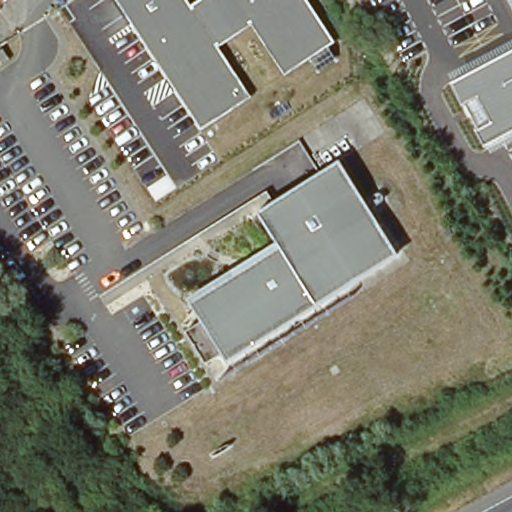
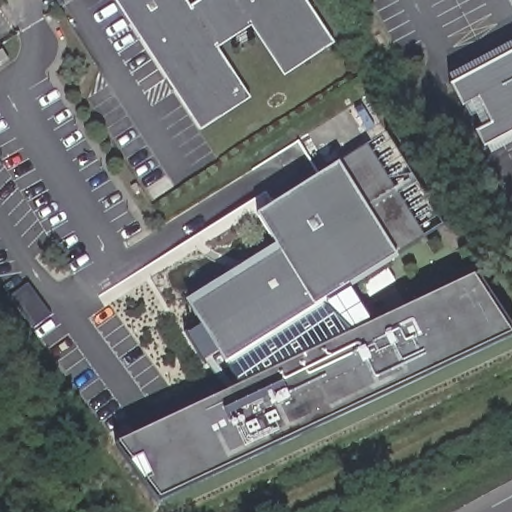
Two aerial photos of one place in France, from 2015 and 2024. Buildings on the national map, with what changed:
unchanged [(215,0),(301,0),(325,36),(291,58),(257,10),(212,39),(245,90),(207,115),(149,27),(141,31),(121,0),(186,0),(194,13),(215,0)]
unchanged [(512,0),(512,11),(507,0),(512,0)]
unchanged [(445,80),(512,42),(512,149),(491,160),(445,80)]
new [(429,237),(401,255),(340,163),(369,145),(429,237)]
unchanged [(197,321),(184,300),(274,242),(257,214),(335,162),(396,255),(350,285),(226,365),(219,355),(205,365),(181,331),(197,321)]
new [(239,385),(226,365),(350,285),(372,322),(473,275),(512,333),(160,496),(118,442),(239,385)]

